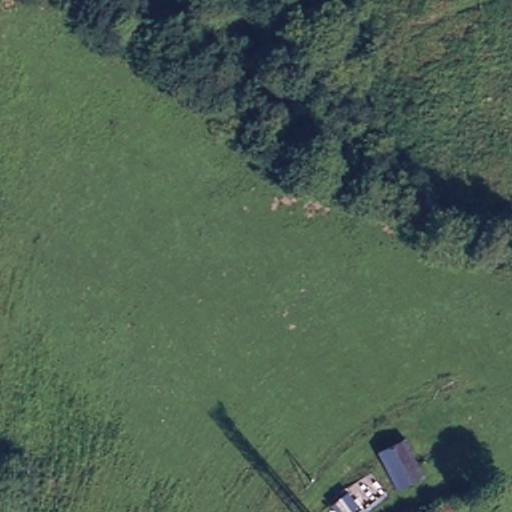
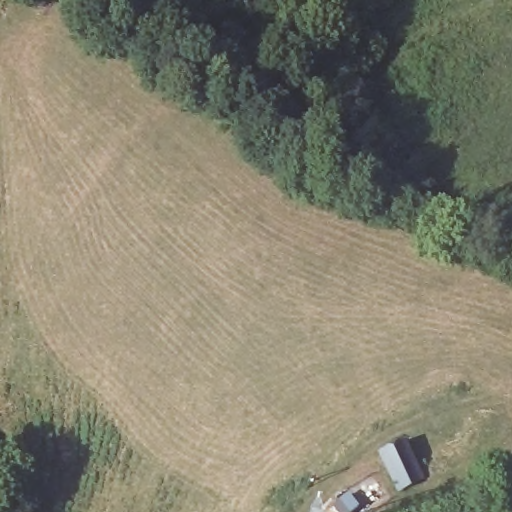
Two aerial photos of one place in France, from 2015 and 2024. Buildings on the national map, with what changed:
unchanged [(380,453),(402,442),(421,480),(399,491),(380,453)]

